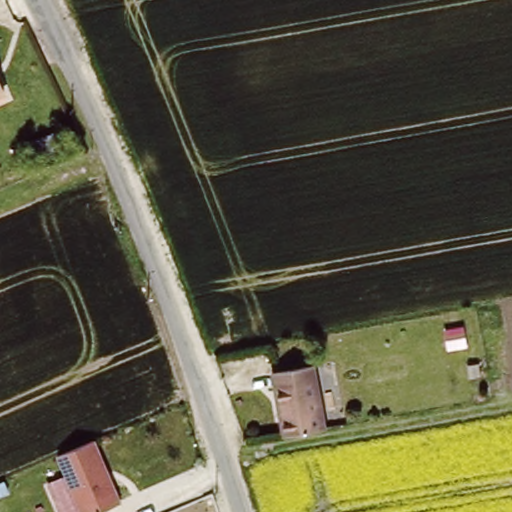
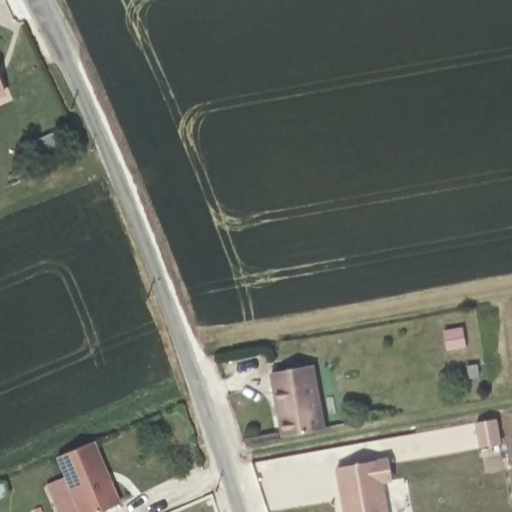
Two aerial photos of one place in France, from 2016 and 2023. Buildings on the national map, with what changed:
unchanged [(0,94),(2,97),(0,98),(0,94)]
new [(465,327),(468,346),(447,349),(444,331),(465,327)]
unchanged [(285,437),(273,372),(313,365),(325,431),(285,437)]
new [(497,420),(502,444),(482,447),(477,423),(497,420)]
unchanged [(94,437),(120,502),(98,512),(79,512),(55,455),(94,437)]
new [(338,467),(389,458),(393,480),(383,482),(389,512),(345,512),(338,467)]
unchanged [(65,477),(79,512),(58,512),(45,484),(65,477)]

